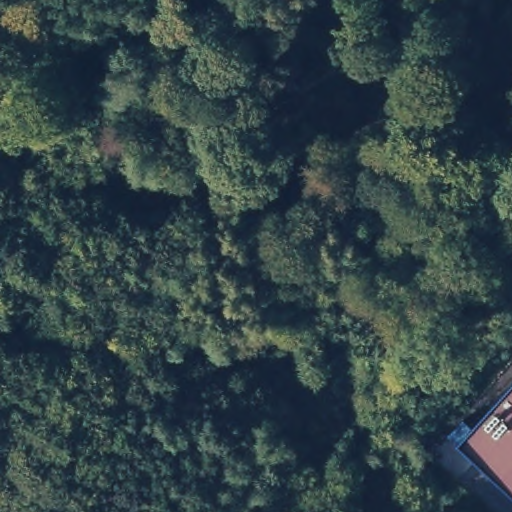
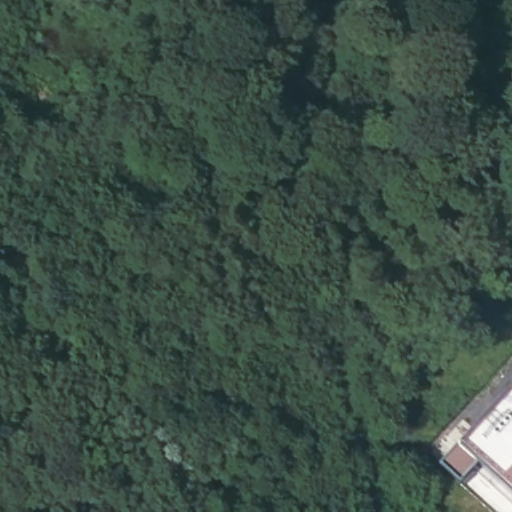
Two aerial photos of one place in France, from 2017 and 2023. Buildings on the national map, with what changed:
unchanged [(457,445),(512,383),(512,495),(457,445)]

